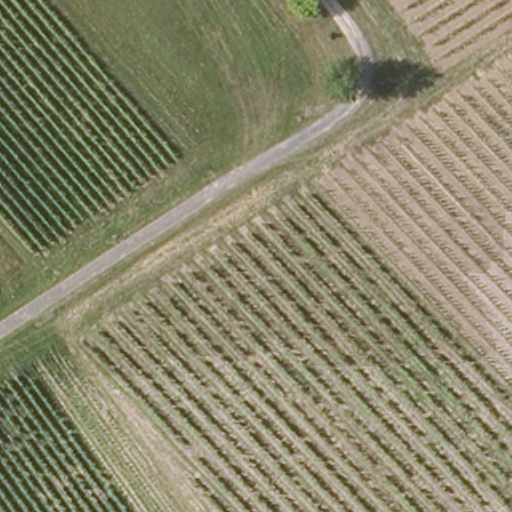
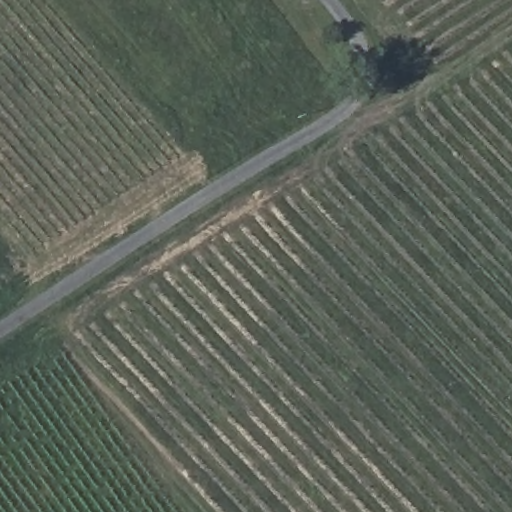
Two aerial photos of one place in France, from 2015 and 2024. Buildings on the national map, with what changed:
[]

